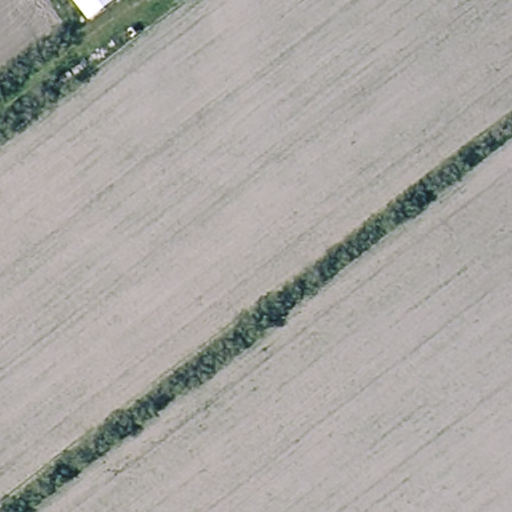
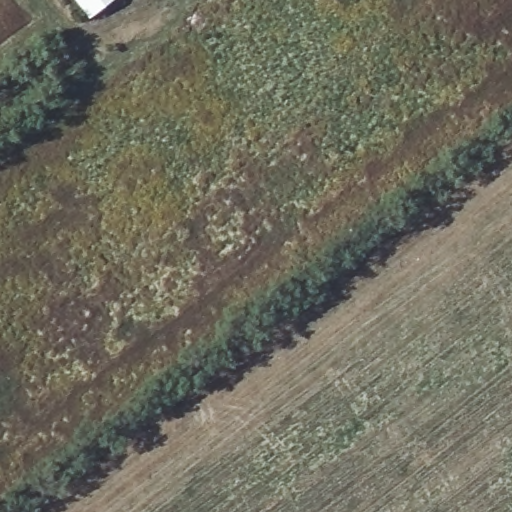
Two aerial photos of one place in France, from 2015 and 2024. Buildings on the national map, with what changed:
unchanged [(72,0),(120,0),(86,21),(72,0)]

